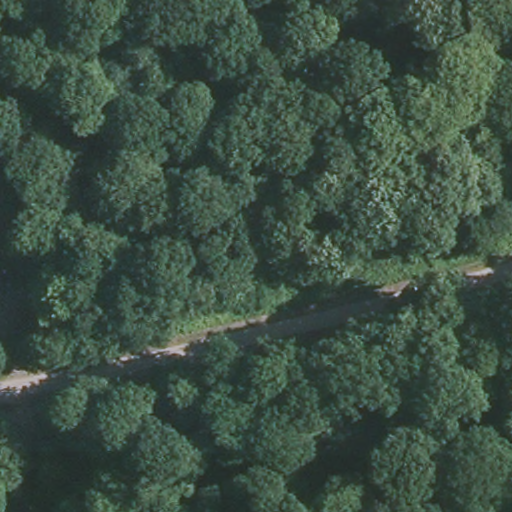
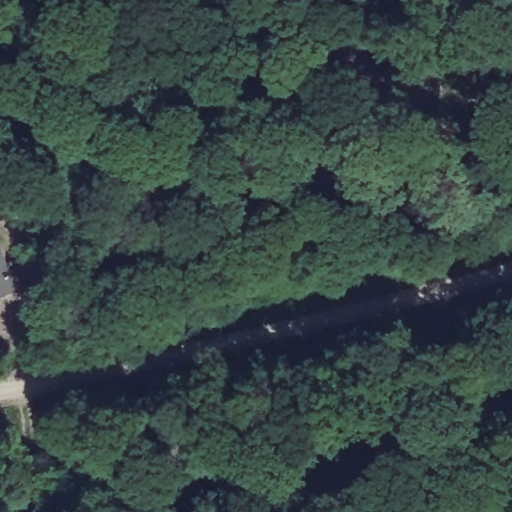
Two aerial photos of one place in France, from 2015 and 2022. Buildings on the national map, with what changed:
unchanged [(0,294),(0,256),(8,277),(14,288),(0,294)]

